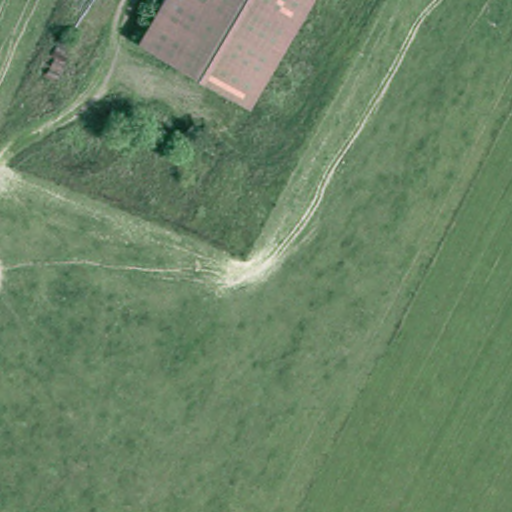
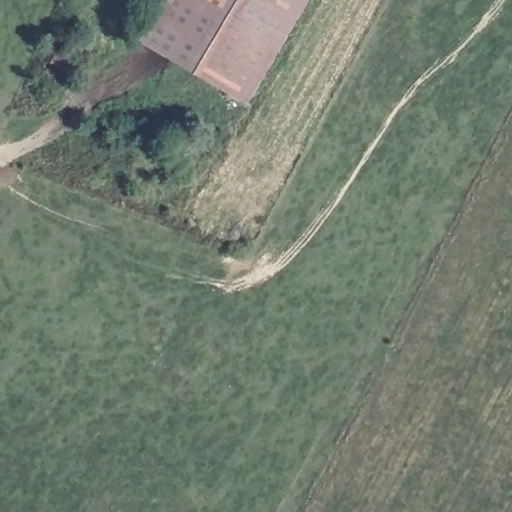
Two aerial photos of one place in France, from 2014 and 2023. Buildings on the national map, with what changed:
unchanged [(162,0),(309,0),(247,105),(139,40),(162,0)]

